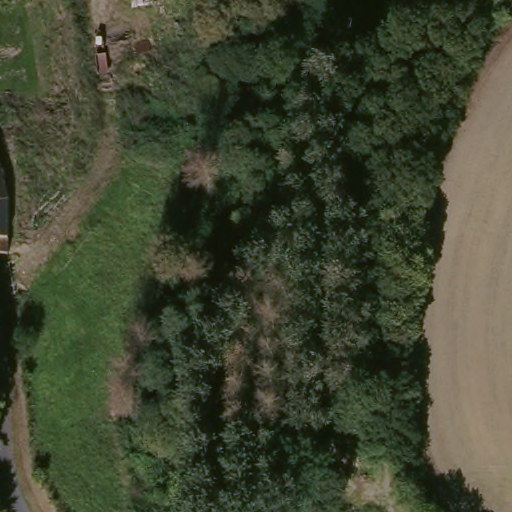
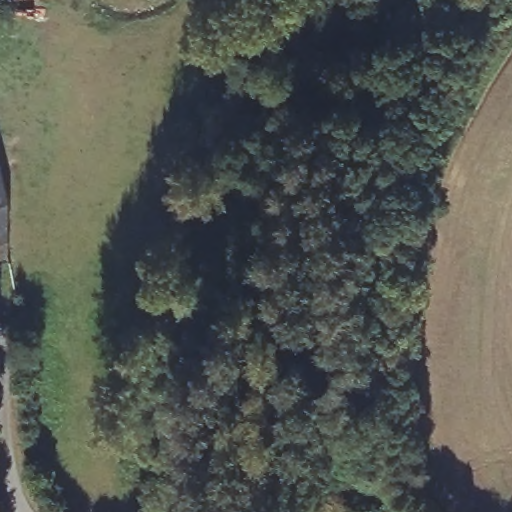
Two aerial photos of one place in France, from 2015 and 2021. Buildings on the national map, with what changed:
unchanged [(12,260),(0,262),(0,171),(8,206),(12,260)]

